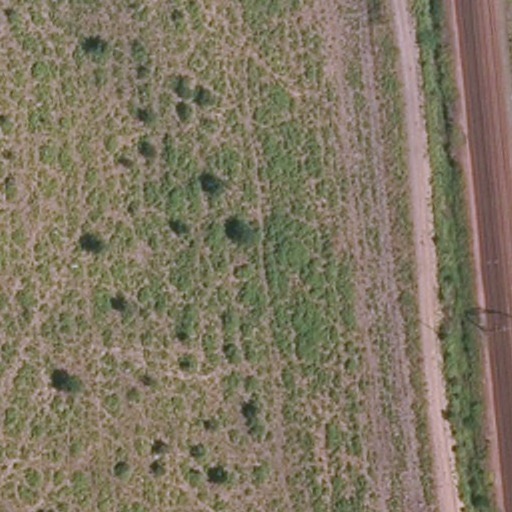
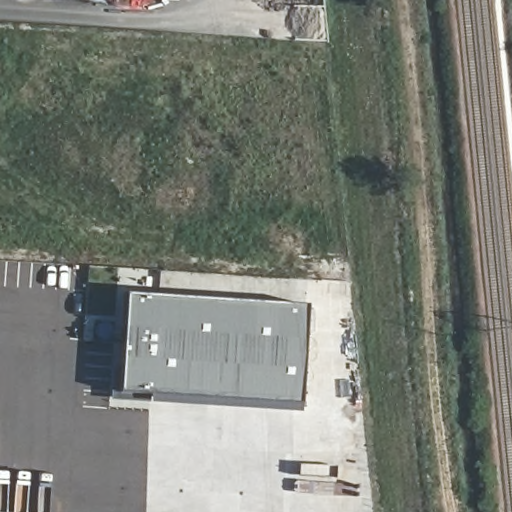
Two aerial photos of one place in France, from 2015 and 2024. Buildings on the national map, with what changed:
new [(123,297),(306,308),(299,408),(116,397),(123,297)]

